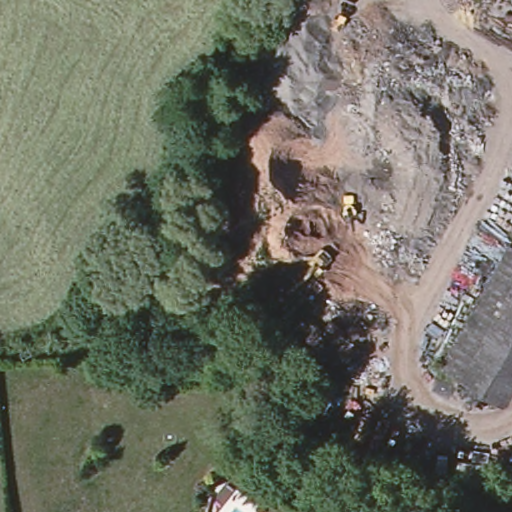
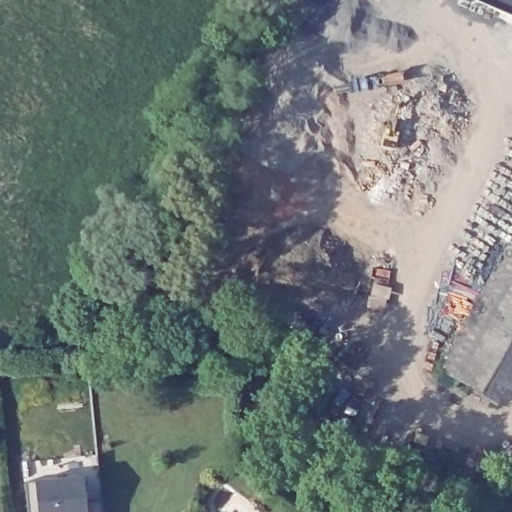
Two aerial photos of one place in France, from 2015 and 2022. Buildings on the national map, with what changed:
unchanged [(505,246),(512,251),(512,268),(450,379),(435,370),(505,246)]
unchanged [(512,268),(512,286),(489,327),(458,383),(450,379),(512,268)]
unchanged [(512,286),(512,341),(489,327),(512,286)]
unchanged [(489,327),(512,341),(512,377),(497,404),(458,383),(489,327)]
new [(100,455),(104,500),(88,501),(85,477),(27,483),(25,462),(100,455)]
new [(85,477),(88,501),(104,500),(105,512),(30,512),(27,483),(85,477)]

